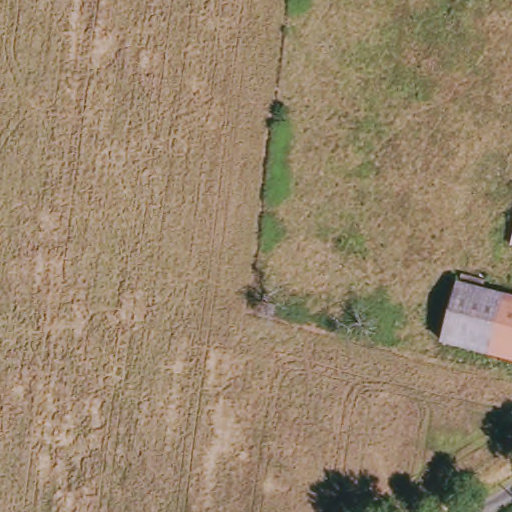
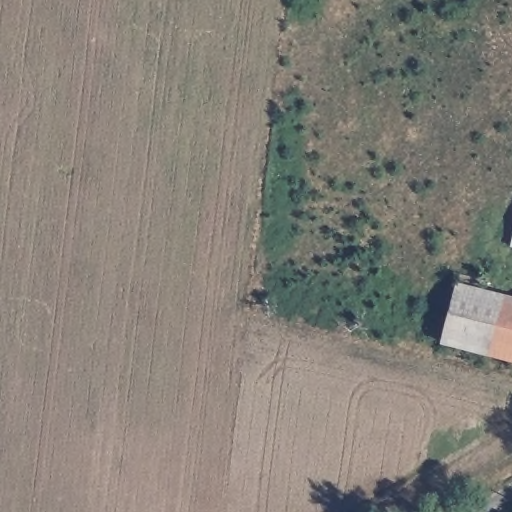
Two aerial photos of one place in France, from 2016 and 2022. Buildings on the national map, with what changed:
unchanged [(512,360),(450,345),(463,284),(512,295),(512,360)]

